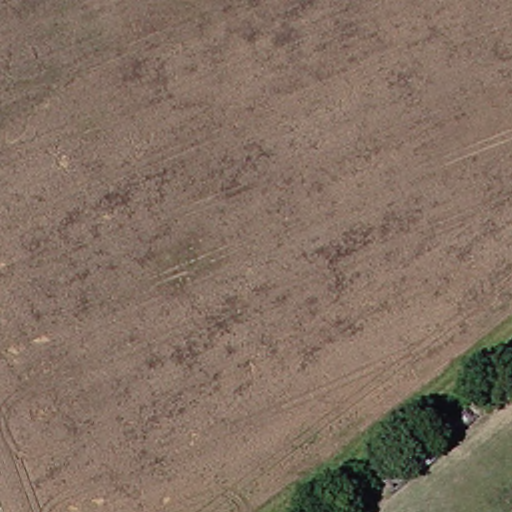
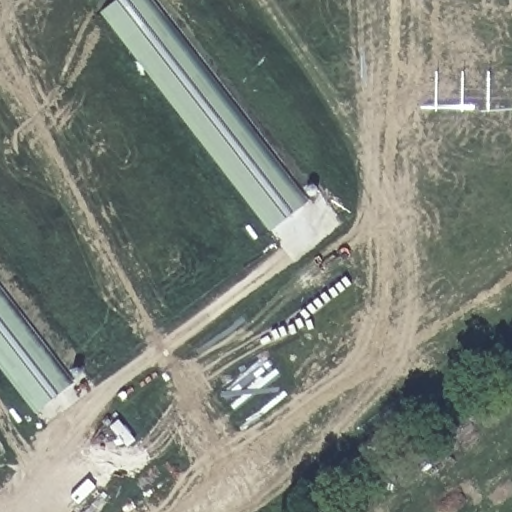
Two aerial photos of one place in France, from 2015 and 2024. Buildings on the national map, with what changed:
new [(269,233),(100,14),(117,0),(153,0),(308,202),(269,233)]
new [(0,369),(0,286),(74,382),(34,412),(0,369)]

